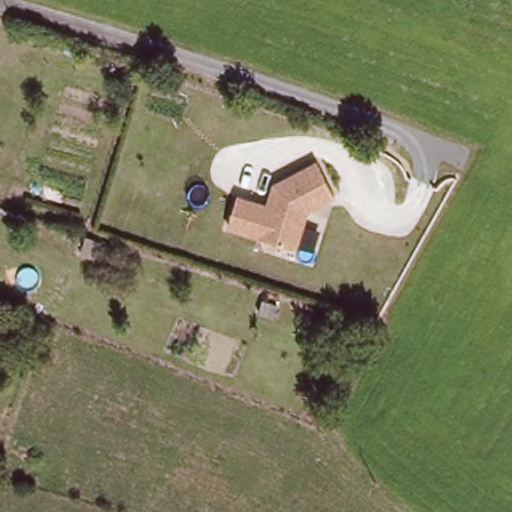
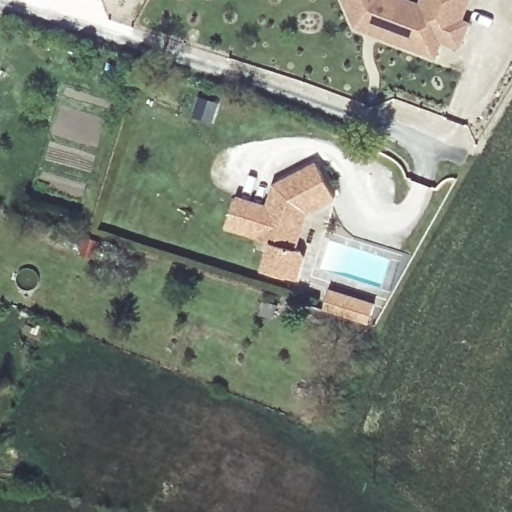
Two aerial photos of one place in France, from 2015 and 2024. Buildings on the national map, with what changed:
new [(420,2),(421,0),(473,0),(466,20),(473,22),(463,50),(444,44),(438,59),(356,31),(343,0),(413,0),(420,2)]
unchanged [(262,267),(269,243),(256,239),(257,238),(226,228),(236,199),(266,209),(273,187),(315,165),(333,200),(305,215),(301,225),(293,251),(307,254),(299,278),(262,267)]
unchanged [(97,258),(83,254),(88,236),(103,241),(97,258)]
new [(370,321),(349,315),(325,307),(331,288),(356,296),(376,303),(370,321)]

